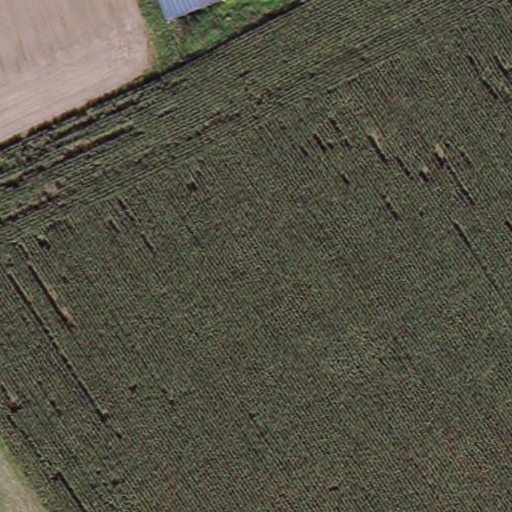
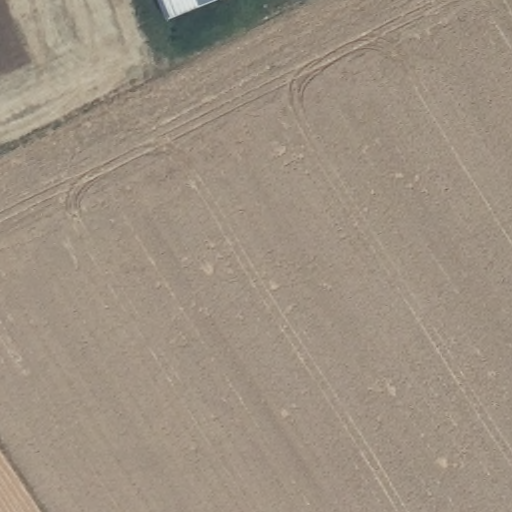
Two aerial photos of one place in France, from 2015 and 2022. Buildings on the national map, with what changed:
unchanged [(170,27),(159,0),(240,0),(170,27)]

